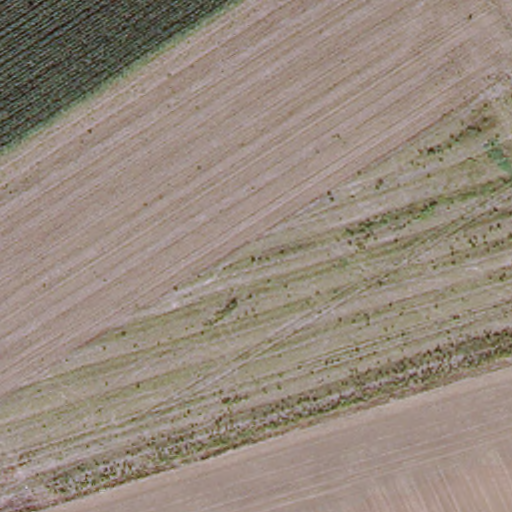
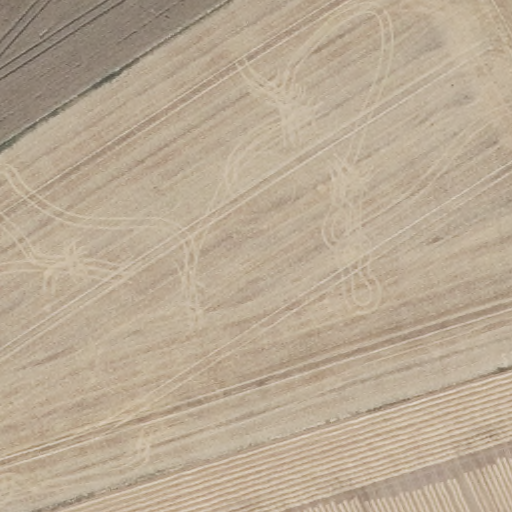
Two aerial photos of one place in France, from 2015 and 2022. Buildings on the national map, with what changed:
[]

